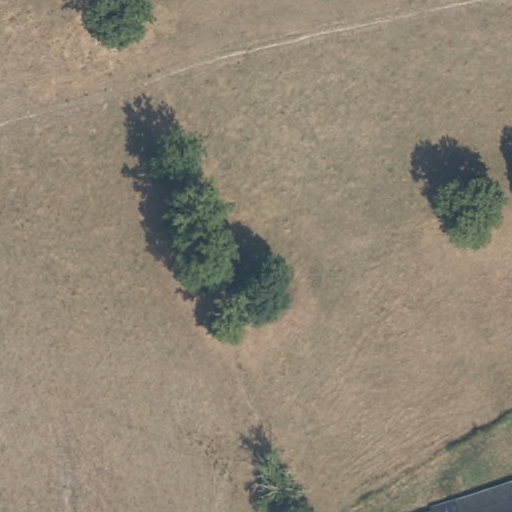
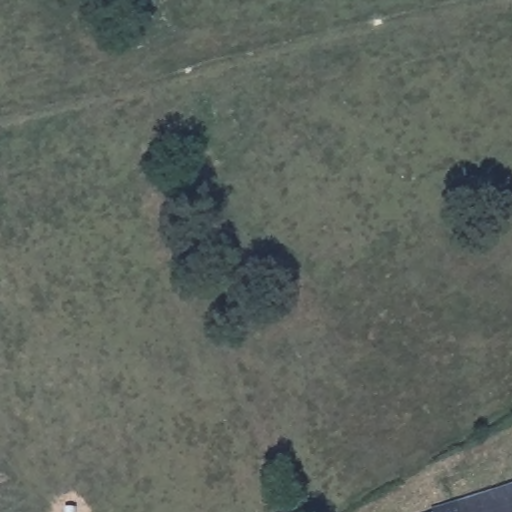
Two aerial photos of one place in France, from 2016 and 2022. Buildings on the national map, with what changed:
unchanged [(434,512),(512,487),(512,512),(434,512)]

